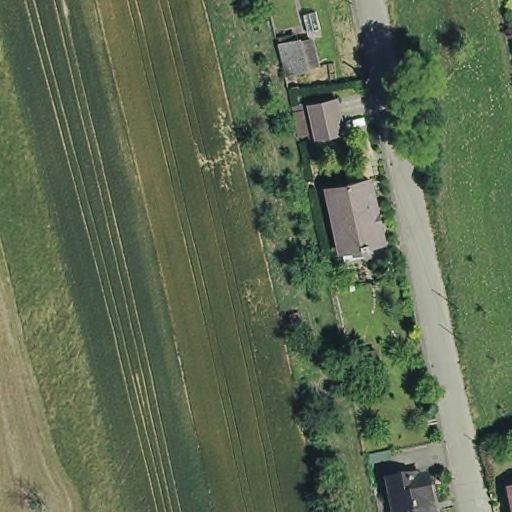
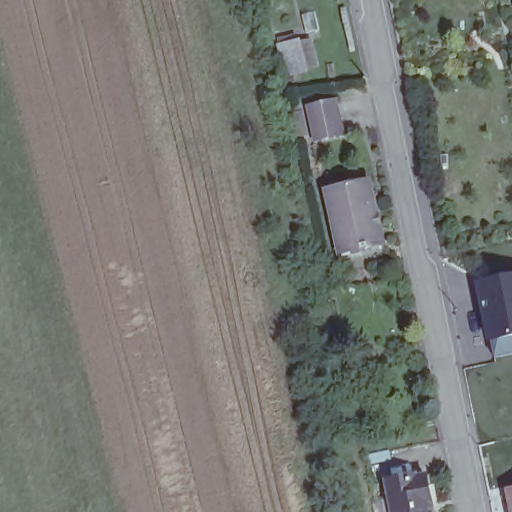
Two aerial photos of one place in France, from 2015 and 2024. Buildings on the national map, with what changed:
unchanged [(280,46),(299,41),(306,70),(287,75),(280,46)]
unchanged [(304,98),(331,92),(339,127),(311,133),(304,98)]
unchanged [(334,239),(323,184),(343,180),(342,177),(365,172),(378,234),(364,237),(364,240),(357,241),(336,246),(334,239)]
new [(486,341),(475,281),(512,274),(512,336),(486,341)]
unchanged [(392,504),(389,487),(391,487),(388,470),(416,465),(417,466),(426,464),(436,512),(396,512),(394,503),(392,504)]
unchanged [(512,479),(512,512),(507,512),(501,481),(512,479)]

